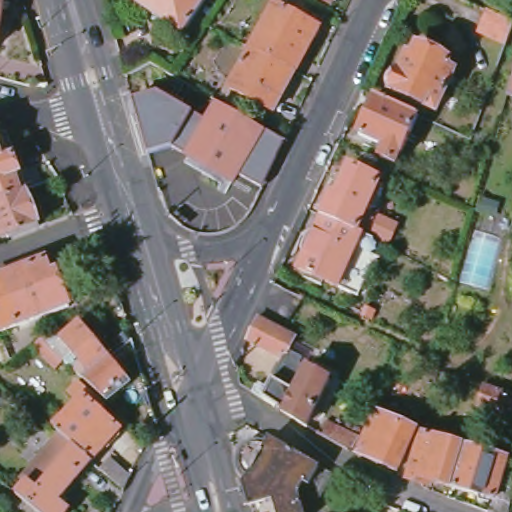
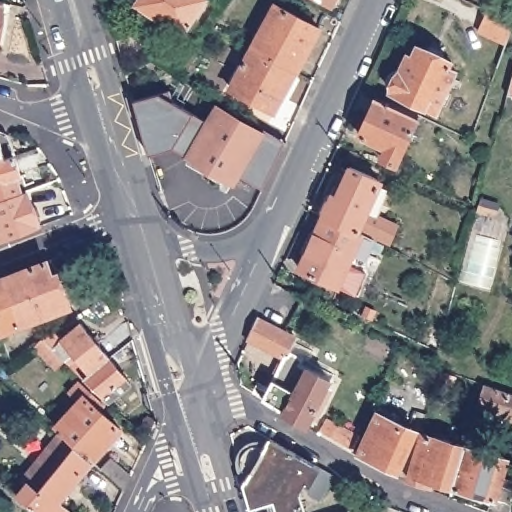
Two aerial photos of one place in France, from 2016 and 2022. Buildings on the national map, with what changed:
unchanged [(1,50),(0,49),(0,0),(10,2),(8,11),(1,50)]
unchanged [(184,34),(136,3),(138,0),(206,0),(184,34)]
unchanged [(337,5),(327,0),(340,0),(337,5)]
unchanged [(296,73),(252,49),(275,5),(320,29),(296,73)]
unchanged [(478,30),(487,10),(512,22),(512,27),(506,44),(478,30)]
unchanged [(437,112),(390,91),(391,90),(390,89),(389,88),(388,86),(387,85),(387,84),(387,82),(387,80),(387,79),(387,77),(387,75),(388,75),(389,73),(390,71),(392,70),(394,69),(395,69),(397,68),(398,68),(400,68),(401,68),(407,55),(412,56),(417,45),(452,62),(449,68),(455,71),(437,112)]
unchanged [(275,112),(230,89),(252,49),(296,73),(275,112)]
unchanged [(507,91),(512,73),(512,91),(508,91),(507,91)]
unchanged [(280,137),(279,139),(257,184),(233,170),(228,179),(183,151),(143,150),(128,95),(165,85),(168,97),(193,111),(202,95),(258,128),(260,125),(280,137)]
unchanged [(397,165),(380,157),(385,147),(359,135),(377,97),(418,116),(397,165)]
unchanged [(2,132),(4,133),(5,134),(7,135),(7,136),(8,137),(9,138),(10,140),(10,141),(15,155),(0,159),(0,132),(2,132)]
unchanged [(21,175),(17,175),(22,192),(0,199),(0,159),(15,155),(21,175)]
unchanged [(357,232),(322,216),(332,194),(336,196),(350,167),(380,181),(357,232)]
unchanged [(22,192),(27,190),(33,207),(37,209),(40,215),(38,219),(40,226),(2,241),(0,234),(0,199),(22,192)]
unchanged [(491,215),(477,211),(482,199),(495,202),(491,215)]
unchanged [(365,258),(355,252),(338,287),(300,270),(299,269),(298,268),(298,267),(322,216),(357,232),(373,240),(365,258)]
unchanged [(76,301),(4,328),(3,325),(0,317),(0,276),(52,256),(57,269),(63,267),(76,301)]
unchanged [(3,325),(0,326),(0,317),(3,325)]
unchanged [(293,337),(284,357),(248,339),(257,319),(293,337)]
unchanged [(40,347),(47,340),(47,339),(61,330),(68,339),(86,324),(114,357),(95,373),(95,372),(87,378),(70,361),(62,369),(40,347)]
unchanged [(262,399),(252,392),(256,385),(267,390),(284,357),(292,352),(303,358),(300,365),(330,380),(307,427),(262,399)]
unchanged [(95,372),(95,373),(114,357),(135,383),(113,402),(112,401),(88,379),(87,378),(95,372)]
unchanged [(125,430),(97,461),(66,433),(60,428),(85,401),(76,392),(84,383),(107,405),(103,410),(125,430)]
unchanged [(502,425),(487,420),(489,412),(476,407),(483,384),(512,394),(512,420),(505,417),(502,425)]
unchanged [(403,450),(393,470),(355,452),(374,411),(370,404),(371,400),(394,410),(390,418),(408,427),(403,450)]
unchanged [(358,435),(350,451),(315,431),(325,418),(358,435)]
unchanged [(454,484),(427,476),(426,481),(410,476),(424,430),(465,443),(454,484)]
unchanged [(74,510),(73,512),(43,512),(22,495),(32,484),(27,480),(66,433),(97,461),(63,502),(74,510)]
unchanged [(252,477),(250,475),(249,474),(248,474),(247,471),(246,470),(245,467),(245,465),(245,462),(245,460),(245,458),(245,457),(246,455),(247,452),(247,451),(248,450),(250,449),(252,447),(254,446),(255,445),(257,445),(258,445),(261,444),(263,444),(266,444),(268,445),(271,445),(275,439),(325,468),(338,476),(325,500),(313,494),(312,488),(314,486),(310,483),(303,493),(309,512),(257,512),(249,484),(252,477)]
unchanged [(503,473),(512,476),(512,512),(498,512),(488,508),(490,500),(480,497),(480,491),(454,484),(465,443),(509,456),(503,473)]
unchanged [(131,476),(125,490),(100,469),(111,458),(131,476)]

